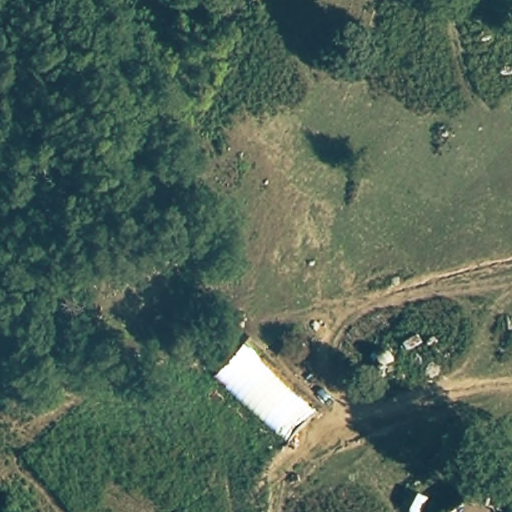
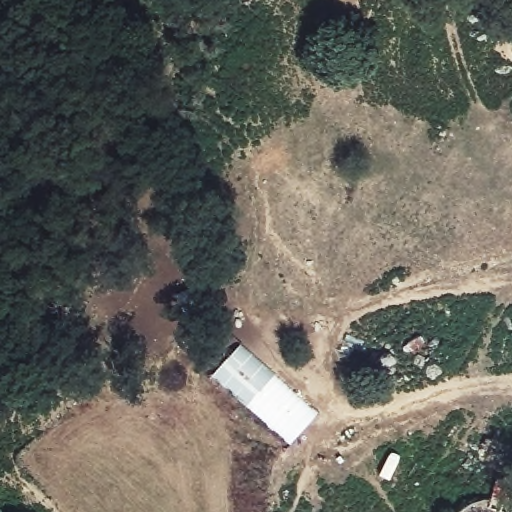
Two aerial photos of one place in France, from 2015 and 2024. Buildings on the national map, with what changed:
unchanged [(316,415),(294,441),(209,372),(237,346),(316,415)]

